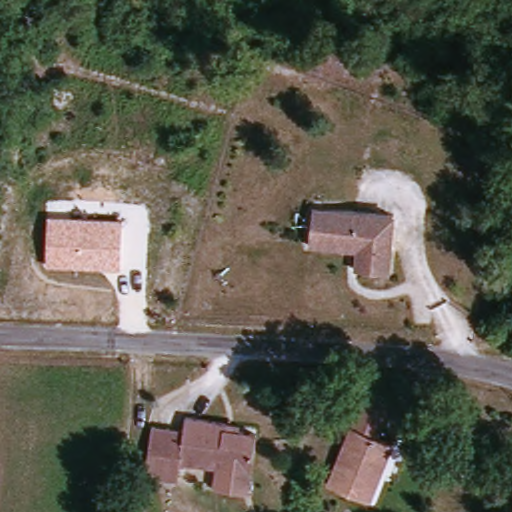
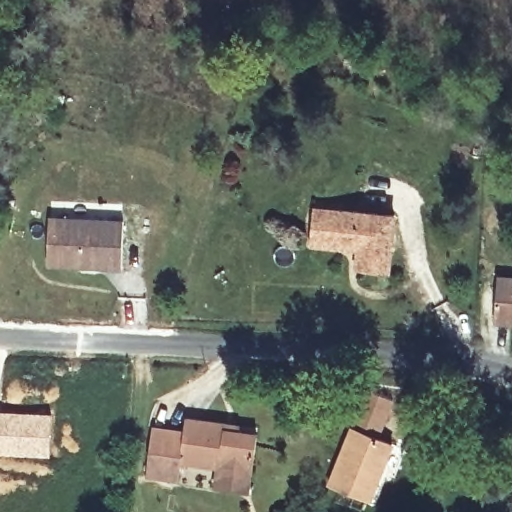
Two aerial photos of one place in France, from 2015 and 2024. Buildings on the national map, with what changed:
unchanged [(358,270),(360,250),(312,244),(314,226),(316,207),(328,208),(397,216),(390,273),(358,270)]
unchanged [(123,221),(121,268),(46,265),(49,217),(123,221)]
new [(512,278),(512,325),(493,324),(496,277),(512,278)]
new [(52,412),(49,456),(0,455),(0,410),(52,412)]
unchanged [(154,451),(159,448),(158,428),(187,429),(192,420),(231,425),(263,432),(259,458),(256,472),(184,462),(180,481),(161,480),(153,478),(154,451)]
unchanged [(338,483),(344,468),(359,424),(391,437),(401,441),(392,463),(390,469),(379,497),(338,483)]

